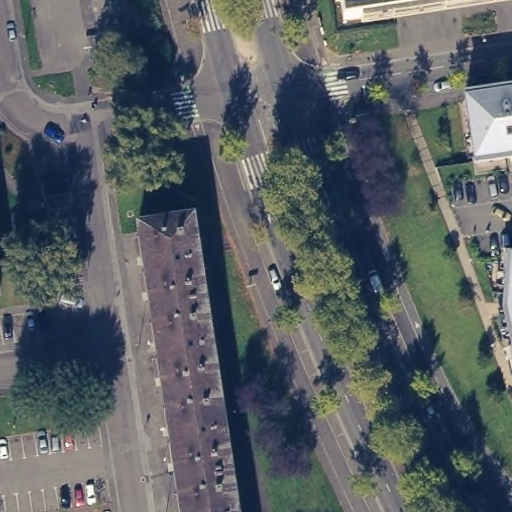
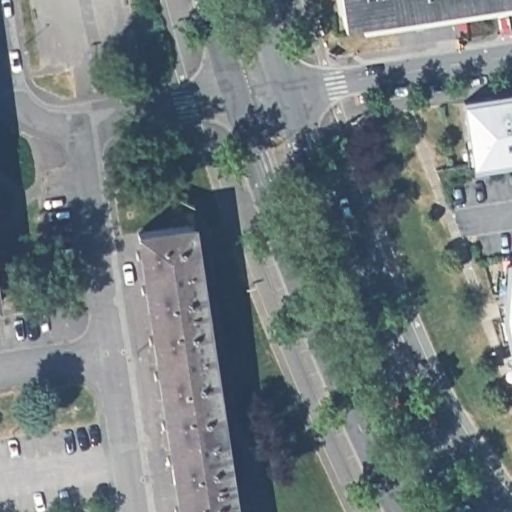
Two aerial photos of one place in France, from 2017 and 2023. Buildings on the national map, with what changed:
unchanged [(343,18),(340,0),(464,0),(343,18)]
unchanged [(472,168),(460,95),(512,88),(512,162),(472,168)]
unchanged [(241,512),(186,512),(143,227),(197,219),(241,512)]
unchanged [(499,314),(502,258),(512,259),(512,370),(499,314)]
unchanged [(511,411),(512,410),(512,414),(511,411)]

